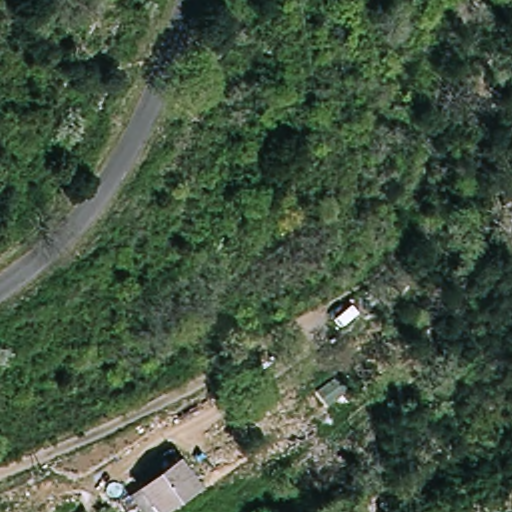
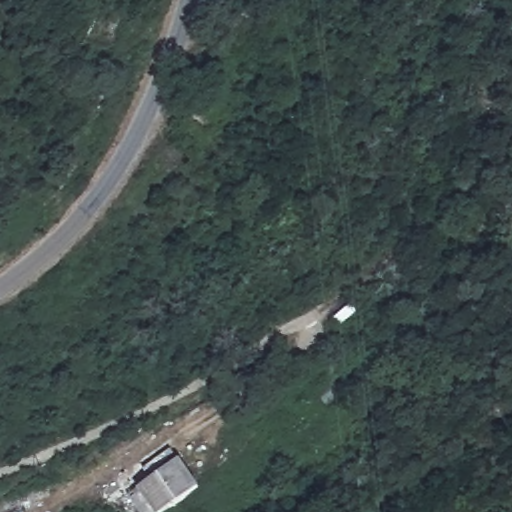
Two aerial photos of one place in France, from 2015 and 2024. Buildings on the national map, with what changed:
unchanged [(143,485),(181,454),(205,483),(164,512),(136,512),(153,500),(143,485)]

